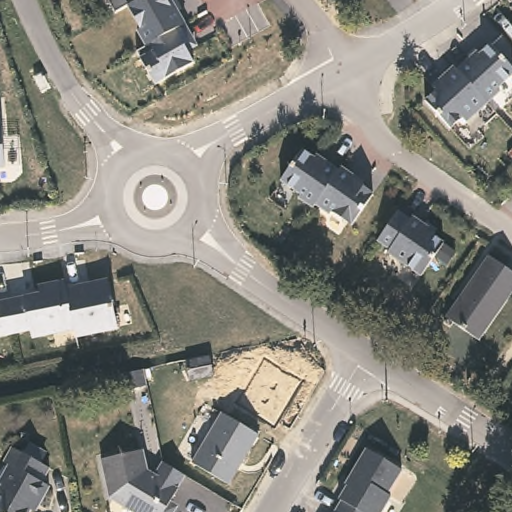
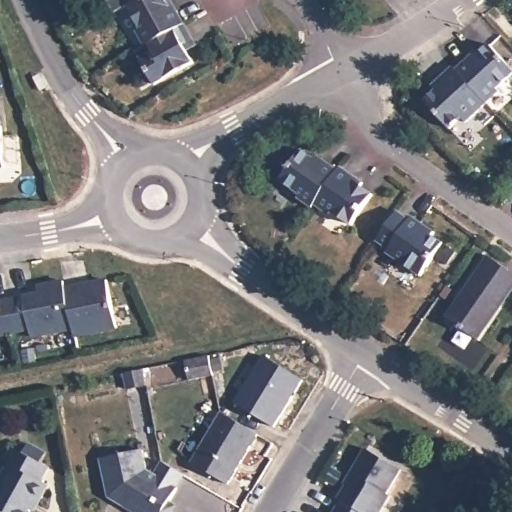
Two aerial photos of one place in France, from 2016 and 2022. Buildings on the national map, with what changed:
unchanged [(144,47),(139,33),(142,32),(128,7),(116,12),(110,0),(173,0),(199,48),(188,52),(195,63),(155,86),(137,51),(144,47)]
unchanged [(483,53),(486,56),(497,46),(512,63),(512,82),(504,90),(506,93),(493,105),(481,91),(463,72),(483,53)]
unchanged [(463,72),(481,91),(493,105),(472,124),(469,121),(458,132),(433,104),(444,94),(440,89),(461,70),(463,72)]
unchanged [(5,166),(0,167),(0,126),(3,125),(5,166)]
unchanged [(300,195),(303,192),(283,178),(303,148),(315,156),(317,153),(340,168),(317,202),(315,205),(300,195)]
unchanged [(340,168),(342,165),(365,180),(363,183),(371,189),(374,192),(354,222),(338,211),(334,208),(332,212),(317,202),(340,168)]
unchanged [(398,210),(411,219),(413,216),(436,231),(433,234),(444,242),(422,275),(388,251),(391,248),(378,240),(398,210)]
unchanged [(491,255),(512,270),(512,292),(479,338),(448,316),(491,255)]
unchanged [(105,275),(115,322),(74,331),(73,324),(64,284),(105,275)]
unchanged [(73,324),(30,333),(29,325),(14,328),(8,297),(47,288),(45,280),(62,277),(64,284),(73,324)]
unchanged [(14,328),(0,332),(0,299),(8,297),(14,328)]
new [(264,357),(303,380),(275,427),(235,404),(264,357)]
unchanged [(147,384),(126,388),(124,373),(144,369),(147,384)]
unchanged [(258,435),(229,484),(192,462),(222,413),(258,435)]
unchanged [(42,482),(48,486),(39,502),(36,501),(33,510),(29,509),(28,512),(0,512),(0,489),(3,484),(0,483),(0,482),(8,466),(3,463),(11,448),(49,468),(42,482)]
unchanged [(402,469),(387,494),(390,495),(380,512),(335,512),(341,502),(339,500),(356,470),(354,468),(367,449),(402,469)]
unchanged [(156,476),(163,463),(185,476),(178,488),(169,502),(172,512),(133,512),(108,496),(101,459),(143,450),(148,472),(156,476)]

